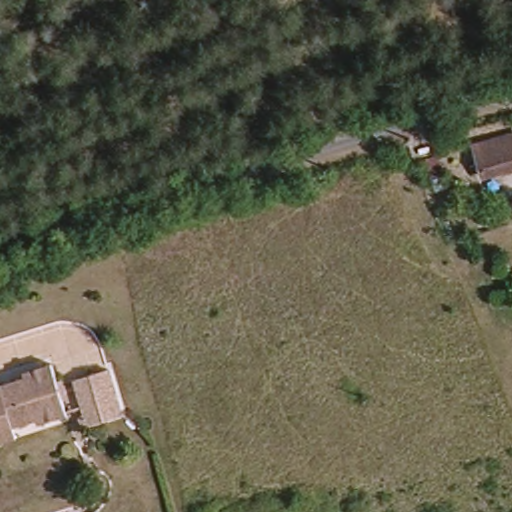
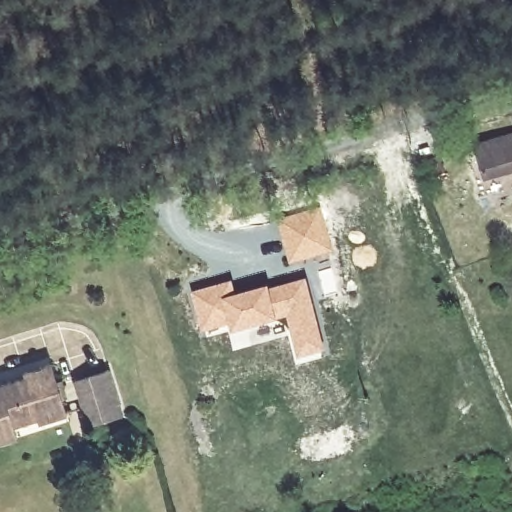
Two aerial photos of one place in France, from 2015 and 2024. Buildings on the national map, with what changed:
unchanged [(512,170),(483,180),(472,149),(512,136),(512,170)]
unchanged [(431,156),(420,160),(416,148),(427,146),(431,156)]
new [(320,206),(332,251),(288,264),(275,220),(320,206)]
new [(233,280),(238,293),(307,277),(330,355),(296,365),(285,322),(265,330),(230,336),(228,329),(203,336),(191,291),(233,280)]
unchanged [(0,446),(0,385),(28,376),(26,371),(53,364),(70,415),(42,425),(41,420),(16,428),(20,440),(0,446)]
unchanged [(73,380),(106,370),(120,415),(87,425),(82,410),(73,380)]

